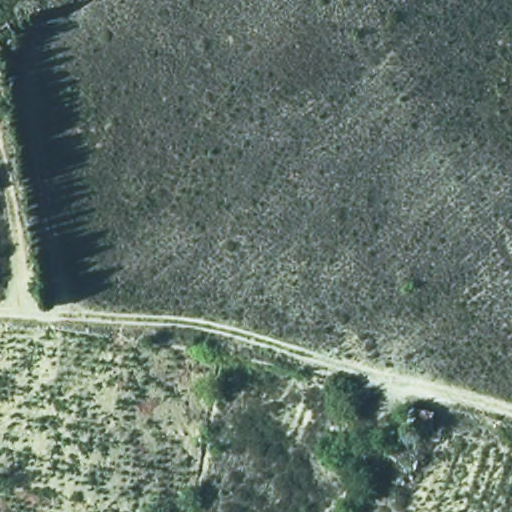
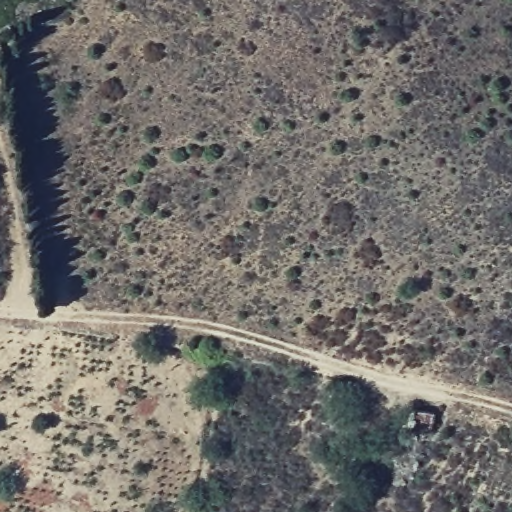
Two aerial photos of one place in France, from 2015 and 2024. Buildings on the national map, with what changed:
unchanged [(428,426),(408,422),(412,406),(430,409),(428,426)]

